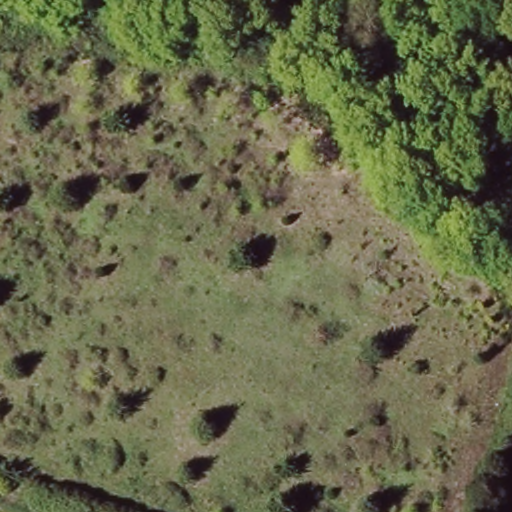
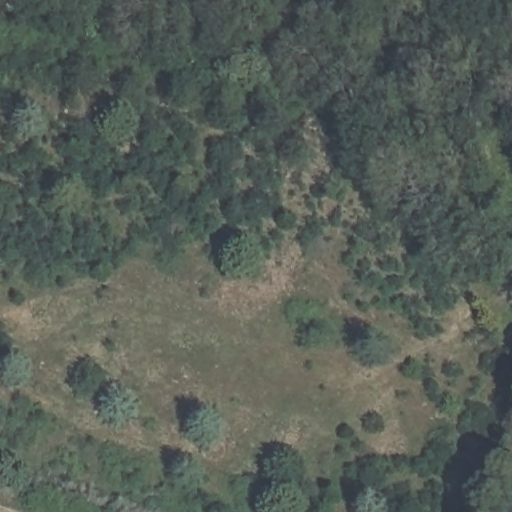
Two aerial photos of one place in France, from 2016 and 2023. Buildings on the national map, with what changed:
[]

